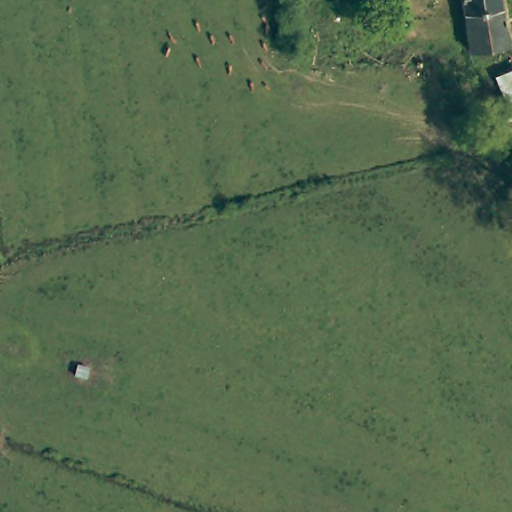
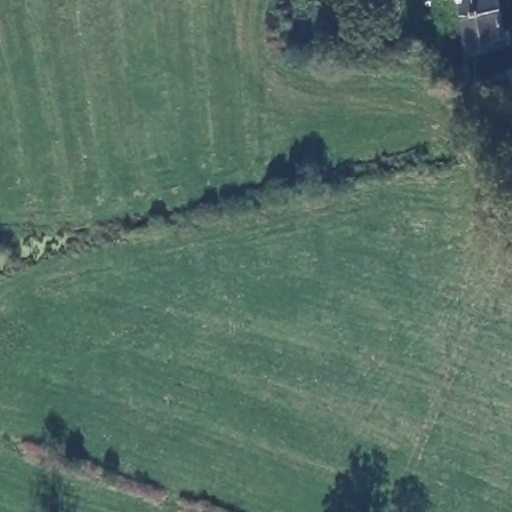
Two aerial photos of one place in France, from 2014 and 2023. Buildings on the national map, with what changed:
unchanged [(501,0),(501,1),(467,7),(466,0),(501,0)]
unchanged [(490,47),(475,49),(467,7),(501,1),(509,44),(490,47)]

